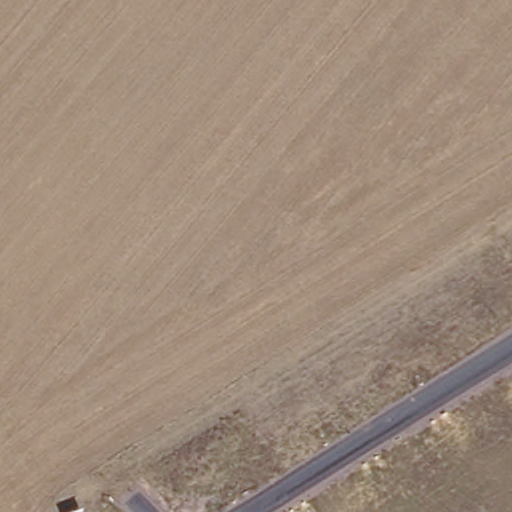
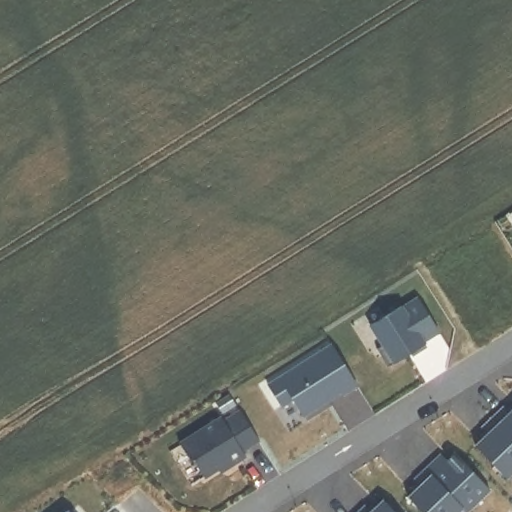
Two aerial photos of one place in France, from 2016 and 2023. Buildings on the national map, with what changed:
new [(422,339),(423,341),(386,365),(375,347),(381,343),(368,324),(400,304),(400,305),(416,295),(437,329),(422,339)]
new [(411,354),(408,351),(423,341),(425,345),(411,354)]
new [(356,383),(343,391),(342,388),(303,412),(292,395),(281,402),(268,381),(330,342),(356,383)]
new [(508,403),(512,407),(507,411),(504,407),(508,403)]
new [(502,405),(507,411),(512,406),(512,438),(491,416),(502,405)]
new [(240,448),(243,454),(227,464),(226,460),(202,475),(191,457),(187,456),(177,441),(219,415),(221,419),(239,408),(257,438),(240,448)]
new [(512,438),(512,468),(504,476),(473,443),(486,432),(480,426),(491,416),(512,438)]
new [(482,428),(486,432),(481,436),(477,432),(482,428)]
new [(440,463),(452,451),(487,488),(463,510),(423,467),(434,457),(436,459),(440,463)]
new [(440,463),(436,459),(441,454),(445,458),(440,463)]
new [(423,467),(459,505),(452,512),(422,512),(406,495),(418,484),(415,480),(412,478),(423,467)]
new [(413,488),(410,484),(414,480),(418,484),(413,488)]
new [(367,510),(380,498),(394,512),(353,512),(362,504),(367,510)]
new [(367,510),(364,506),(368,502),(372,505),(367,510)]
new [(70,509),(73,512),(67,512),(70,509)]
new [(67,511),(68,512),(65,512),(67,511)]

